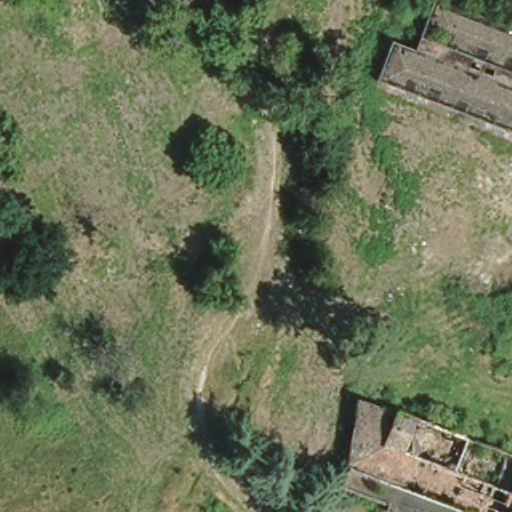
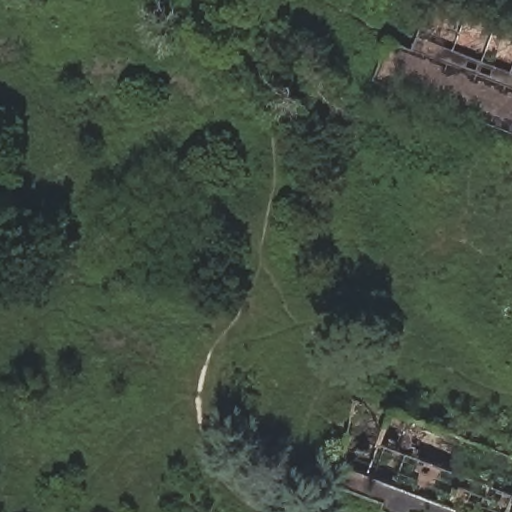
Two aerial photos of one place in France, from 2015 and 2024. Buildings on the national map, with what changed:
unchanged [(431,0),(433,0),(512,31),(512,136),(373,82),(388,43),(410,53),(431,0)]
unchanged [(374,508),(333,488),(350,451),(342,446),(358,405),(386,412),(390,407),(512,456),(512,512),(373,512),(374,508)]

